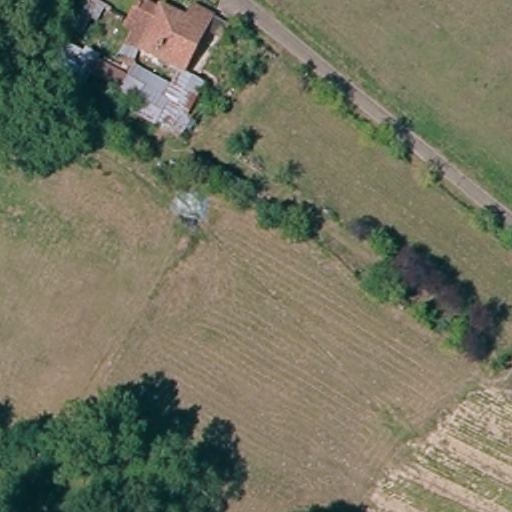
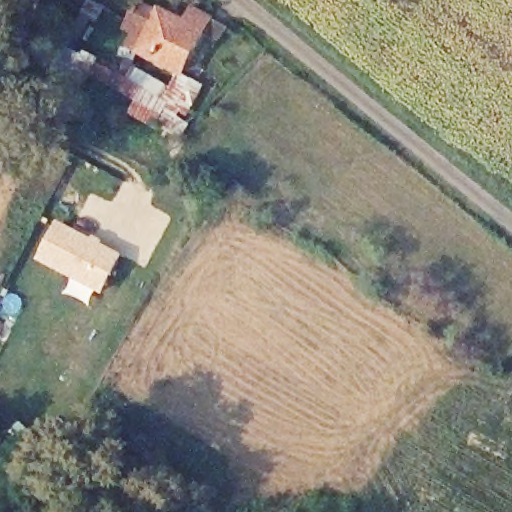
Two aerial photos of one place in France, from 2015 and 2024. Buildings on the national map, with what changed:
unchanged [(190,1),(215,15),(180,74),(207,89),(181,136),(130,112),(135,100),(92,76),(87,86),(52,69),(65,50),(48,39),(63,12),(77,17),(74,40),(114,57),(130,30),(121,26),(134,0),(142,0),(182,19),(190,1)]
new [(92,238),(95,234),(105,240),(103,244),(122,254),(103,294),(36,260),(58,220),(92,238)]

